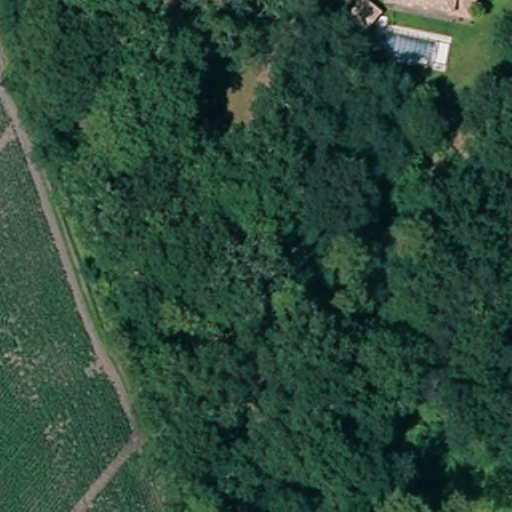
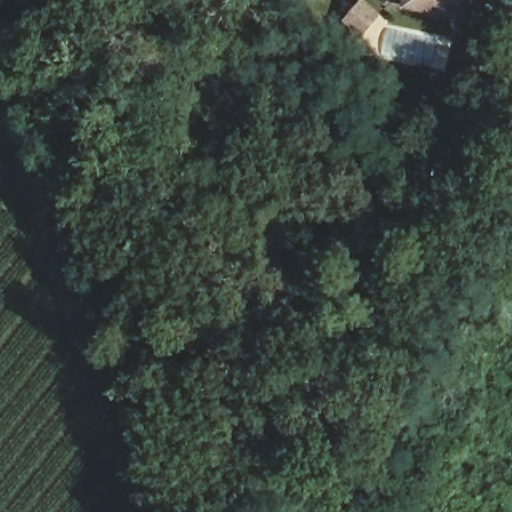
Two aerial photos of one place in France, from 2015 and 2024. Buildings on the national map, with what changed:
unchanged [(462,15),(393,0),(465,0),(462,15)]

